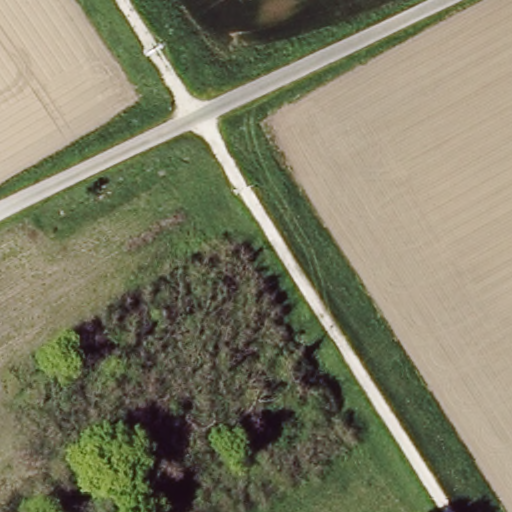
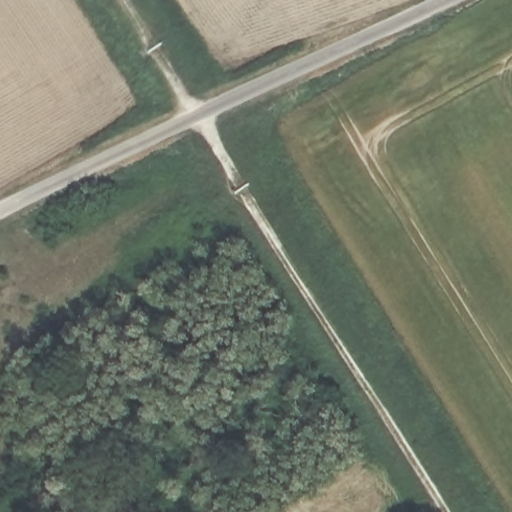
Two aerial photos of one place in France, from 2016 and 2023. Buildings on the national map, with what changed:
[]

